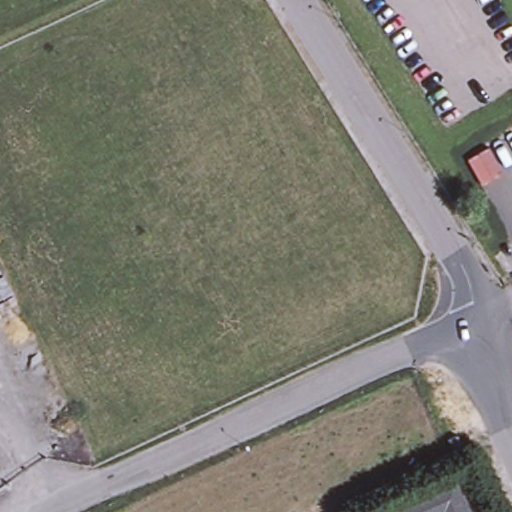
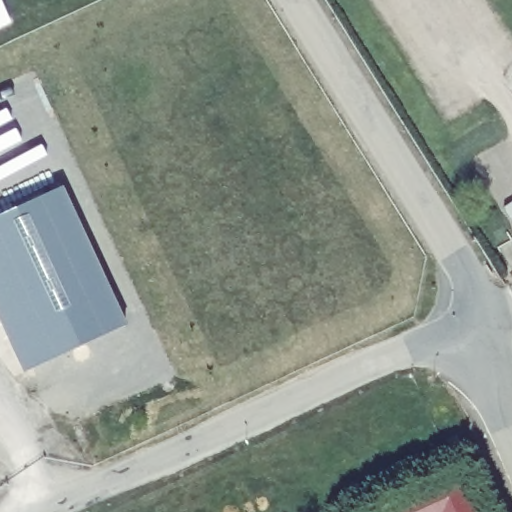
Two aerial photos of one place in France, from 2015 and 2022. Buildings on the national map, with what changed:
new [(0,321),(0,216),(62,188),(126,326),(24,373),(0,321)]
unchanged [(448,442),(458,437),(466,454),(456,458),(448,442)]
unchanged [(462,475),(479,512),(461,512),(454,497),(420,512),(393,512),(391,508),(462,475)]
unchanged [(461,512),(420,512),(454,497),(461,512)]

